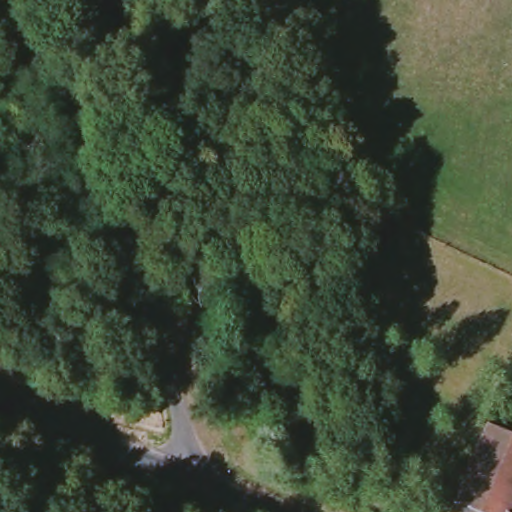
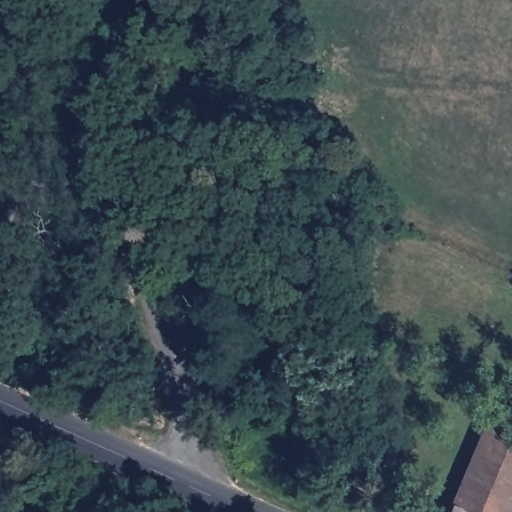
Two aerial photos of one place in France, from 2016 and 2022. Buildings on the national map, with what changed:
unchanged [(512,444),(512,512),(454,512),(487,434),(512,444)]

